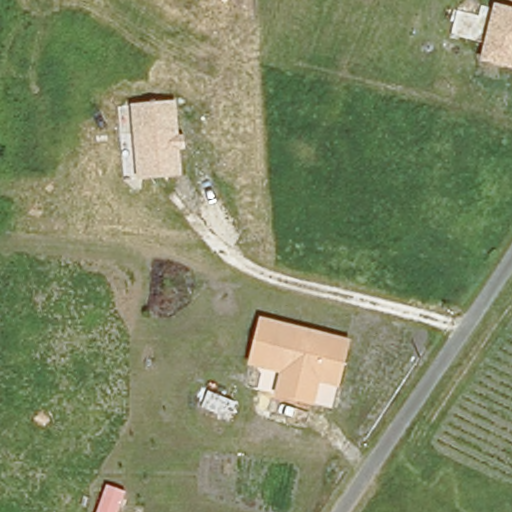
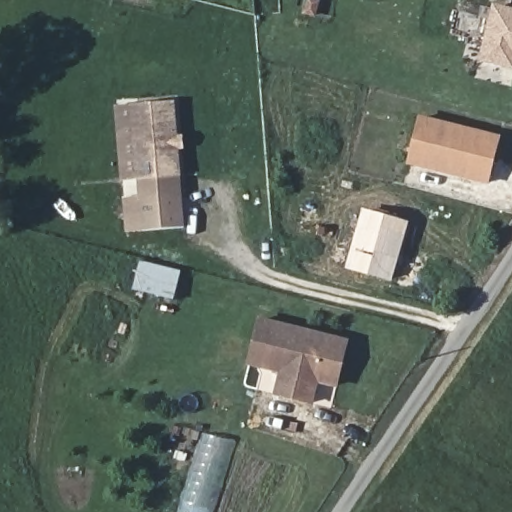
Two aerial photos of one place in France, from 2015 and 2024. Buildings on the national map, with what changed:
unchanged [(481,61),(493,5),(512,9),(512,68),(481,61)]
unchanged [(139,181),(132,103),(177,100),(184,176),(139,181)]
new [(487,184),(418,165),(407,163),(419,117),(430,120),(498,138),(487,184)]
new [(187,226),(127,231),(124,197),(140,195),(139,181),(184,176),(187,226)]
new [(363,209),(409,222),(392,282),(346,269),(363,209)]
unchanged [(320,383),(315,406),(275,397),(280,372),(247,365),(260,317),(351,340),(339,387),(320,383)]
demolished [(214,380),(194,372),(207,338),(227,346),(214,380)]

